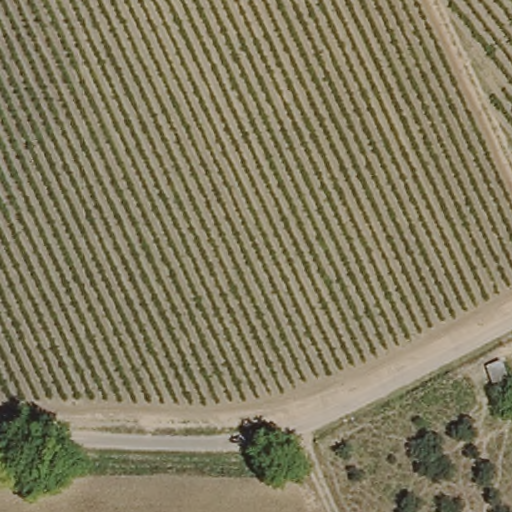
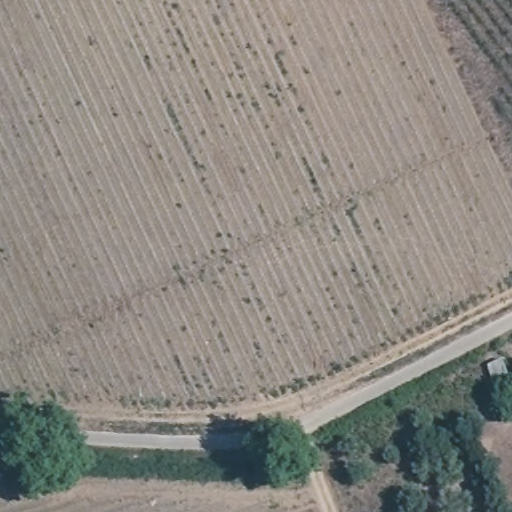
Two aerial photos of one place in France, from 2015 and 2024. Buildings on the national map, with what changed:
unchanged [(486,367),(501,360),(509,378),(494,385),(486,367)]

